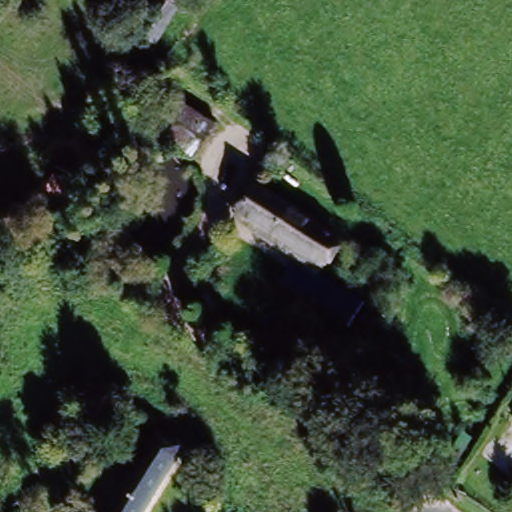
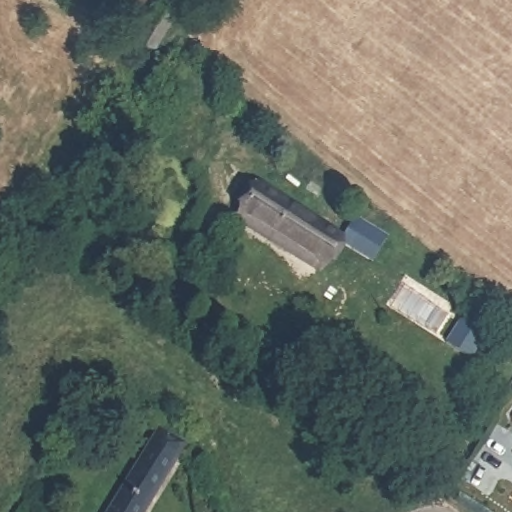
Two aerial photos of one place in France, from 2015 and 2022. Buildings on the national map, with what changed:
unchanged [(169,17),(155,7),(159,0),(180,0),(169,17)]
unchanged [(210,129),(189,162),(158,142),(180,109),(210,129)]
unchanged [(97,157),(61,212),(41,199),(77,144),(97,157)]
unchanged [(256,195),(341,245),(325,272),(240,221),(256,195)]
unchanged [(149,512),(113,512),(163,432),(189,449),(149,512)]

